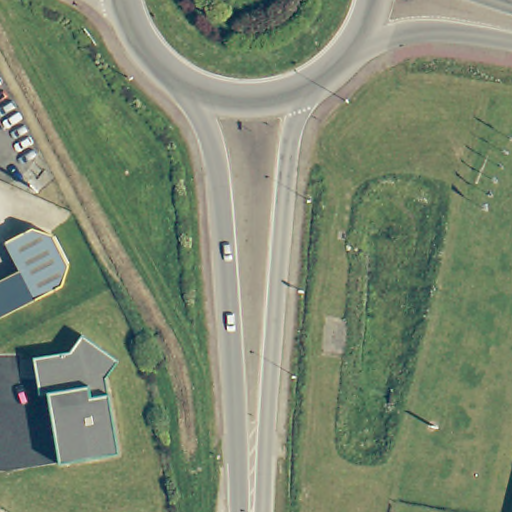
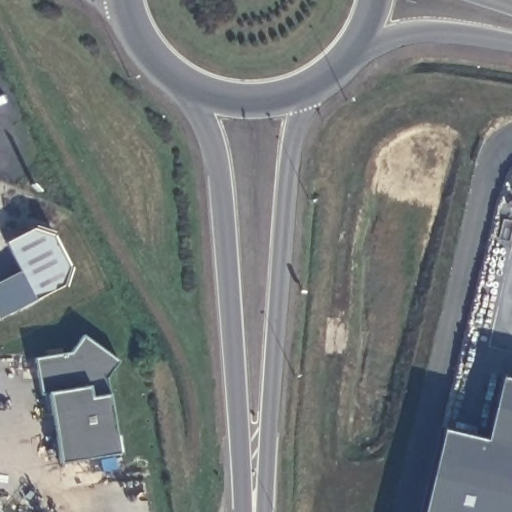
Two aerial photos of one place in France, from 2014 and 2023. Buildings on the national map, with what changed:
unchanged [(21,270),(7,240),(12,238),(34,227),(54,235),(69,265),(62,286),(35,300),(0,316),(0,280),(20,270),(21,270)]
unchanged [(119,362),(107,379),(120,455),(59,465),(47,395),(40,396),(32,358),(69,352),(82,335),(119,362)]
new [(482,439),(498,368),(512,371),(512,512),(421,512),(440,428),(482,439)]

